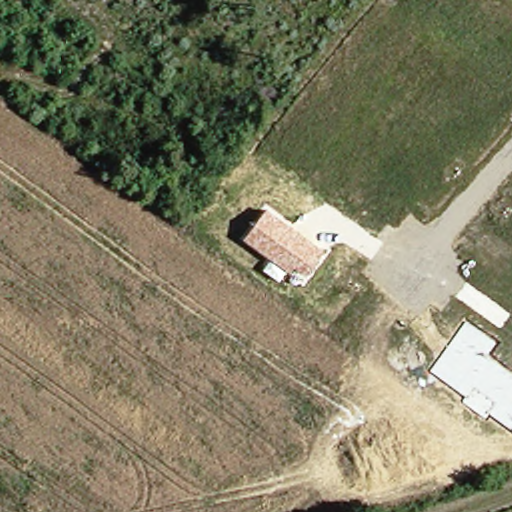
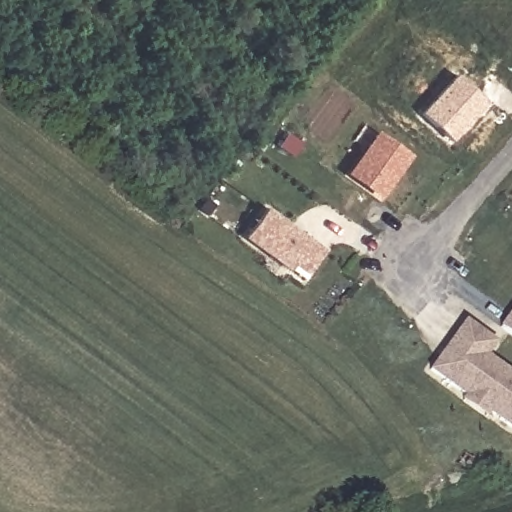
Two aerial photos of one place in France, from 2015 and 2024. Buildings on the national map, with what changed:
new [(458,76),(487,104),(454,141),(423,114),(458,76)]
new [(377,133),(413,157),(382,200),(347,176),(377,133)]
new [(325,249),(306,276),(294,268),(290,273),(246,240),(270,208),(325,249)]
unchanged [(500,328),(512,311),(512,336),(500,328)]
new [(497,343),(488,355),(512,372),(512,430),(490,414),(487,418),(463,401),(465,397),(430,372),(466,321),(497,343)]

